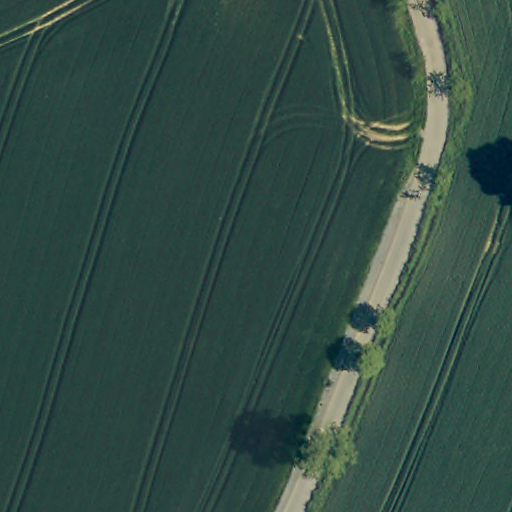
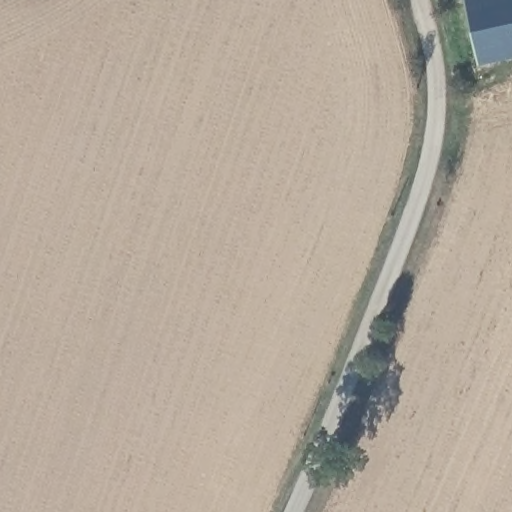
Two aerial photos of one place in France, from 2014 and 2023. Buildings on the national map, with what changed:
new [(482,67),(467,0),(512,0),(512,60),(482,67)]

